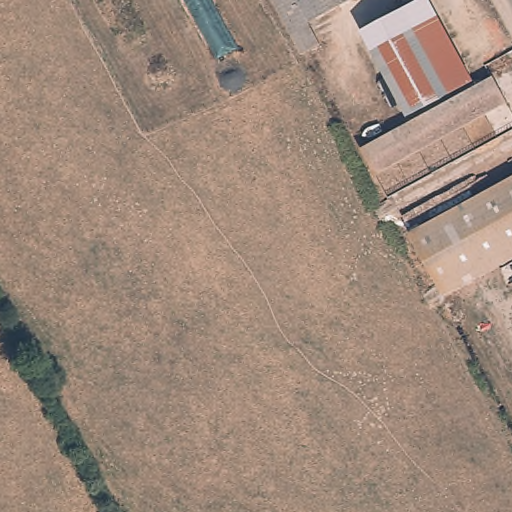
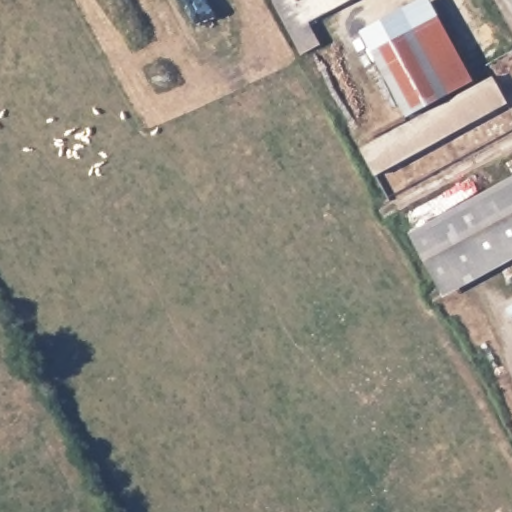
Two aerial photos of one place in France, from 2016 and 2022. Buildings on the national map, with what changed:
unchanged [(275,0),(349,0),(309,21),(324,42),(303,55),(291,33),(272,1),(275,0)]
unchanged [(435,15),(469,76),(406,112),(371,51),(435,15)]
unchanged [(494,73),(509,99),(377,175),(362,148),(494,73)]
unchanged [(440,287),(427,265),(413,238),(512,181),(512,246),(440,287)]

